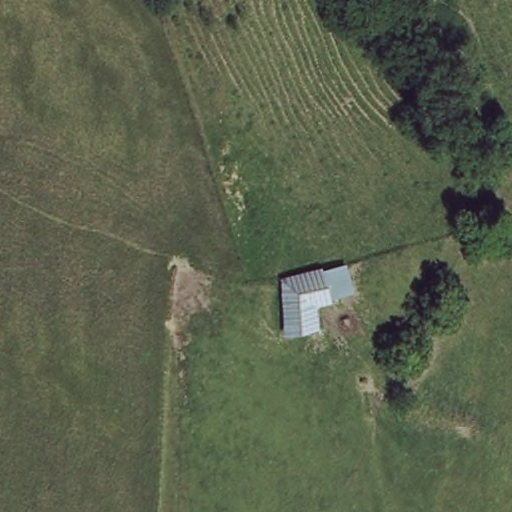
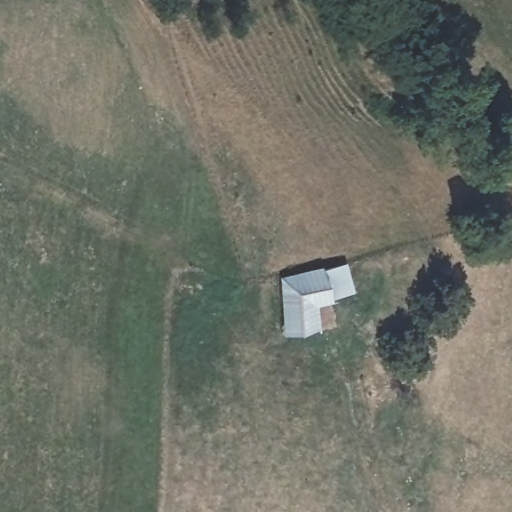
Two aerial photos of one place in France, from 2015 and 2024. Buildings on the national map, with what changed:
unchanged [(316,274),(321,299),(305,301),(309,332),(284,335),(277,285),(316,274)]

